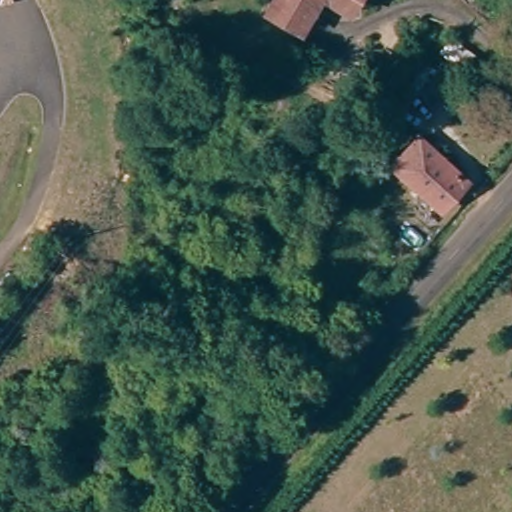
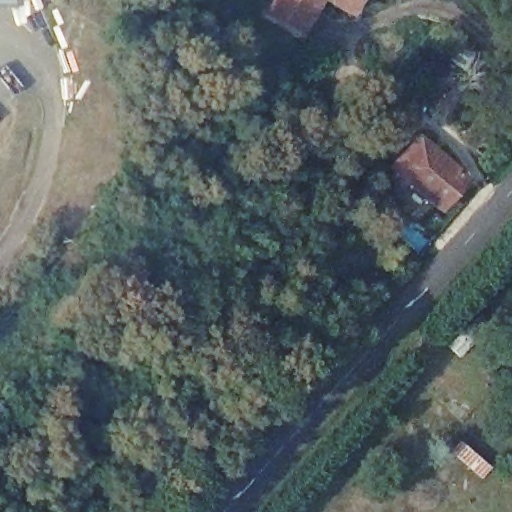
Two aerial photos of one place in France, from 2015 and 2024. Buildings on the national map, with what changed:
unchanged [(260,8),(265,0),(316,0),(299,31),(260,8)]
unchanged [(330,0),(341,0),(338,5),(330,0)]
unchanged [(414,132),(462,178),(438,206),(390,160),(414,132)]

